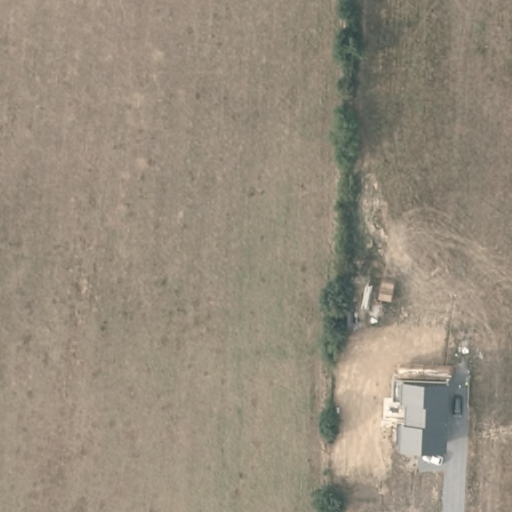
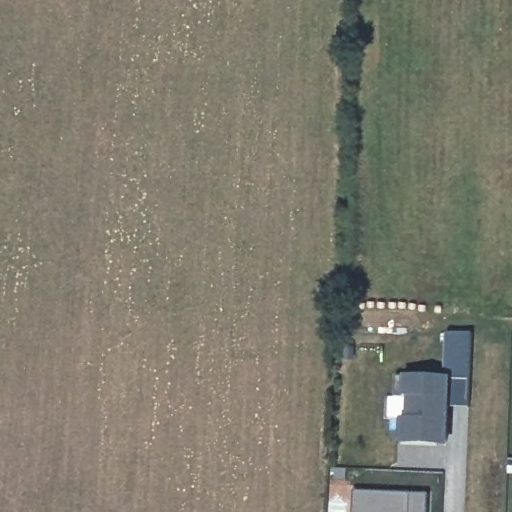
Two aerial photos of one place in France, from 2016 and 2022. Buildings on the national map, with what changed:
unchanged [(447,446),(397,441),(398,415),(403,414),(404,397),(395,397),(396,377),(449,378),(447,446)]
new [(426,512),(351,512),(352,491),(426,494),(426,512)]

